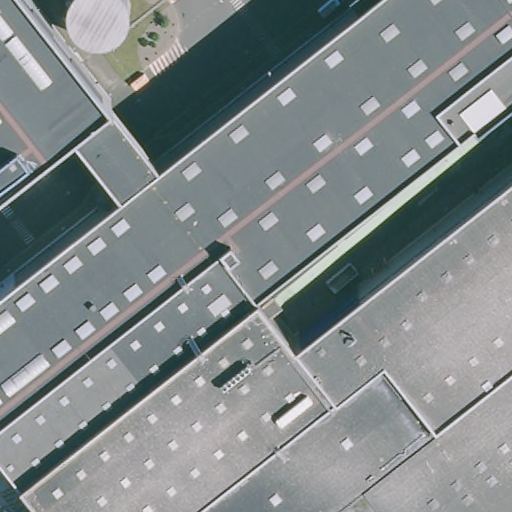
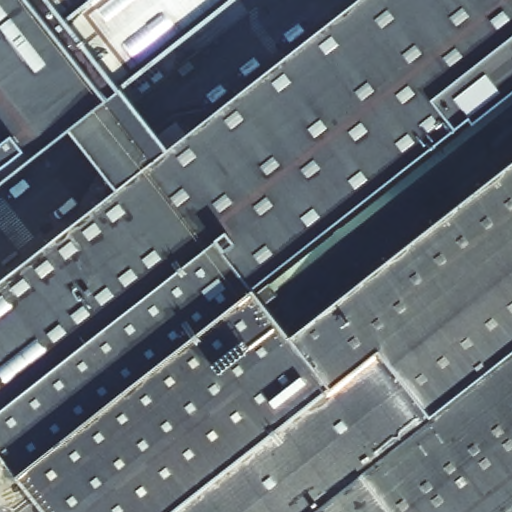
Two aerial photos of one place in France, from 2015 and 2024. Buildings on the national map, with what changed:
unchanged [(70,125),(0,182),(0,0),(35,0),(103,88),(155,154),(352,0),(512,0),(512,83),(255,285),(22,468),(0,440),(0,277),(119,185),(70,125)]
new [(35,0),(216,0),(103,88),(35,0)]
unchanged [(512,512),(67,512),(245,373),(291,337),(295,334),(512,164),(512,512)]
unchanged [(28,481),(20,470),(22,468),(255,285),(265,297),(28,481)]
unchanged [(295,334),(291,337),(245,373),(67,512),(51,512),(28,481),(265,297),(295,334)]

